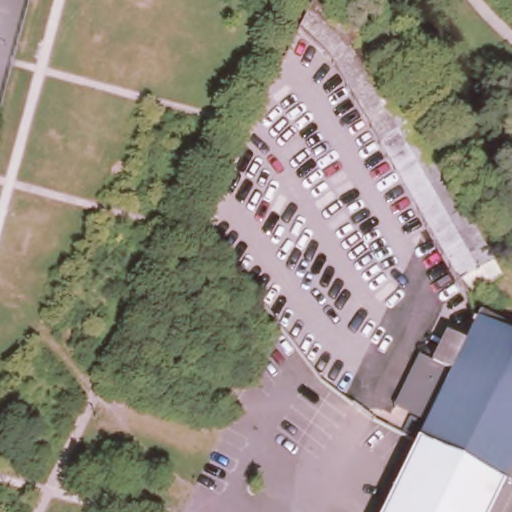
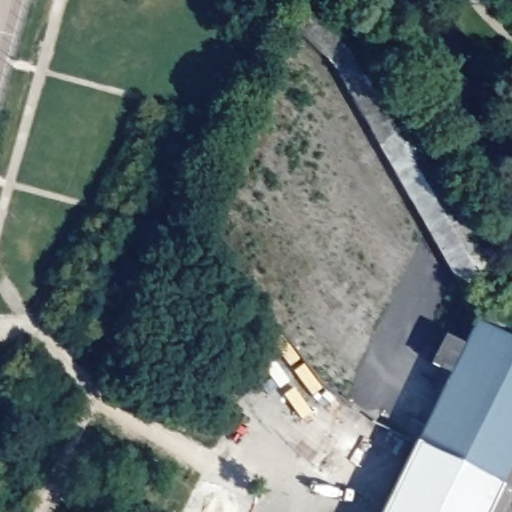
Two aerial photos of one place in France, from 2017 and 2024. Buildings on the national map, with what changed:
unchanged [(501,272),(466,293),(331,61),(297,25),(308,0),(326,0),(366,36),(501,272)]
unchanged [(415,443),(450,372),(433,365),(447,340),(463,347),(478,315),(512,331),(512,462),(501,486),(415,443)]
unchanged [(501,486),(488,512),(381,512),(415,443),(501,486)]

